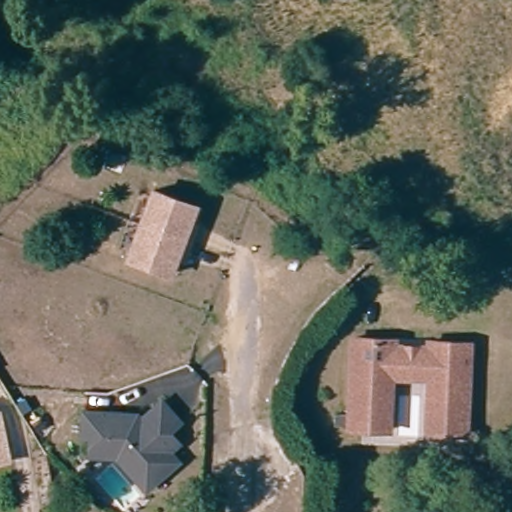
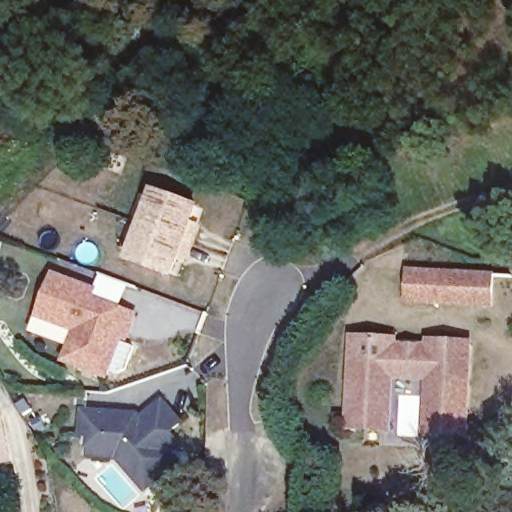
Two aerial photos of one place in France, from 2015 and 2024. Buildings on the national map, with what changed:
unchanged [(190,219),(199,223),(186,258),(177,254),(171,272),(131,255),(143,221),(156,185),(196,203),(190,219)]
new [(496,273),(494,308),(405,302),(407,267),(496,273)]
new [(60,277),(100,292),(97,301),(141,317),(131,341),(126,339),(111,378),(72,363),(83,333),(45,318),(60,277)]
unchanged [(469,397),(467,428),(439,426),(434,426),(435,411),(438,359),(387,356),(383,423),(350,422),(355,331),(396,333),(395,345),(405,345),(405,339),(421,340),(421,346),(431,347),(431,335),(447,336),(472,337),(469,389),(469,397)]
unchanged [(387,356),(438,359),(435,411),(434,426),(428,426),(427,426),(430,373),(394,371),(391,424),(383,423),(387,356)]
unchanged [(151,485),(141,475),(120,452),(93,450),(94,431),(85,430),(86,407),(131,409),(139,410),(143,414),(163,397),(183,415),(172,426),(182,437),(173,445),(183,456),(151,485)]
unchanged [(0,458),(0,419),(10,456),(0,458)]

